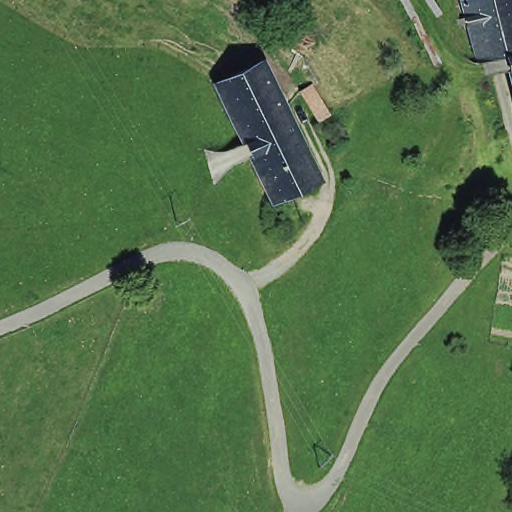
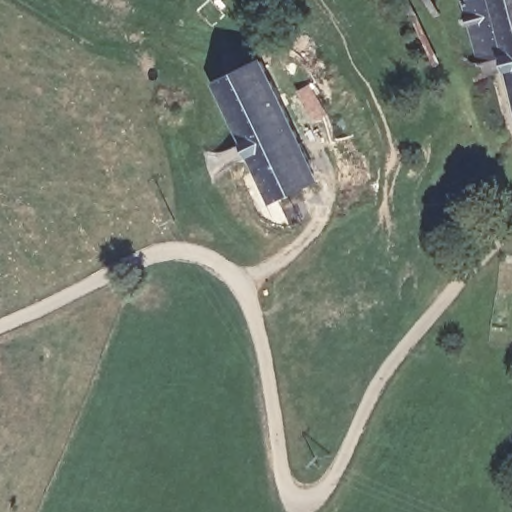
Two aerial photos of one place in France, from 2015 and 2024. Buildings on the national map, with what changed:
unchanged [(499,49),(473,56),(459,0),(486,0),(499,49)]
unchanged [(499,49),(486,0),(512,0),(512,102),(499,49)]
unchanged [(316,167),(270,187),(212,71),(257,50),(316,167)]
unchanged [(304,89),(314,84),(330,117),(321,122),(304,89)]

